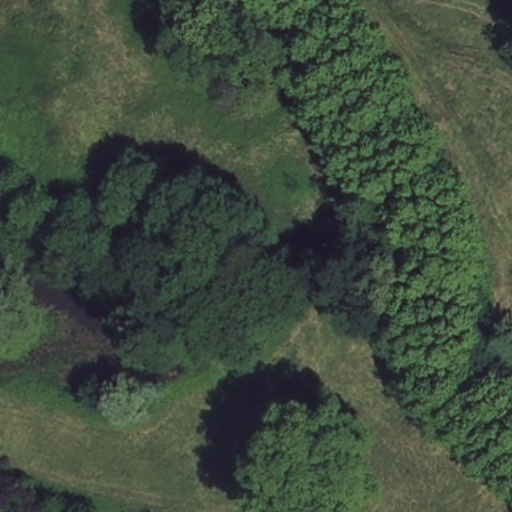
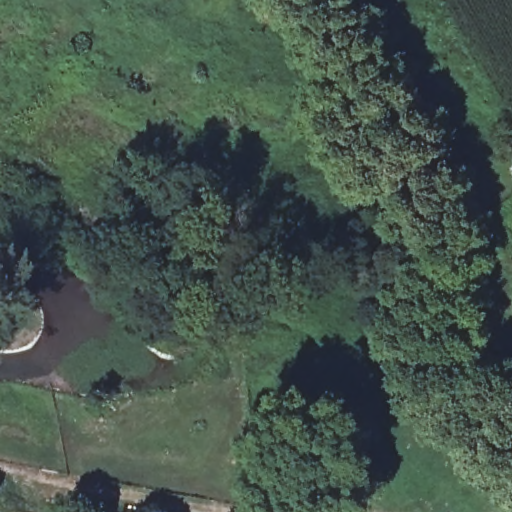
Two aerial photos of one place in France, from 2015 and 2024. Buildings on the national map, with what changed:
[]

